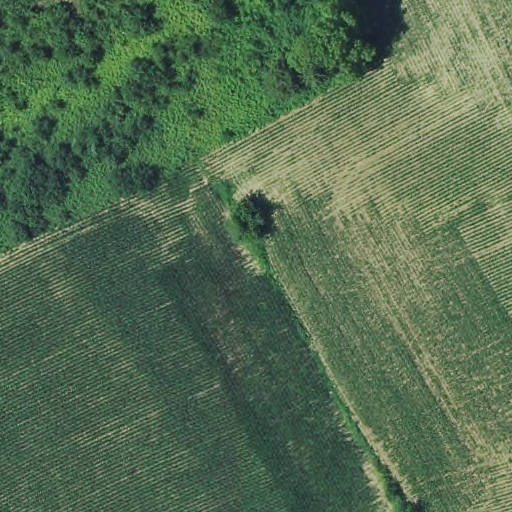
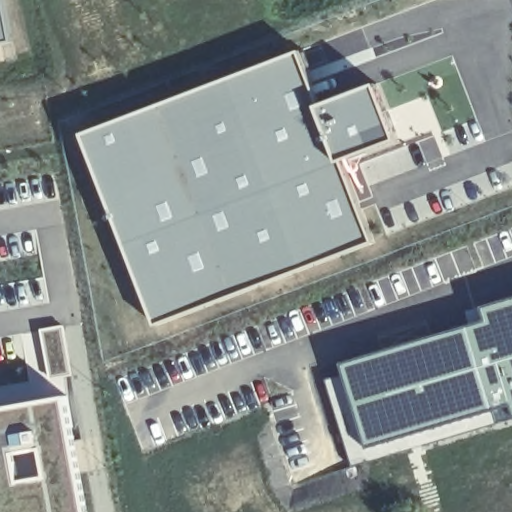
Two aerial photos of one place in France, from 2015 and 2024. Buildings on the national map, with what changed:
new [(0,42),(0,0),(6,0),(13,40),(0,42)]
demolished [(270,48),(277,44),(294,36),(303,53),(286,61),(278,66),(270,48)]
new [(302,48),(320,103),(316,104),(330,141),(342,163),(358,198),(373,241),(343,254),(220,298),(155,325),(143,299),(80,133),(302,48)]
new [(320,103),(376,81),(398,139),(342,163),(330,141),(316,104),(320,103)]
new [(343,372),(340,364),(485,320),(481,307),(512,297),(512,410),(510,405),(417,433),(365,452),(367,458),(349,464),(323,378),(343,372)]
new [(93,512),(0,512),(0,415),(71,401),(93,512)]

